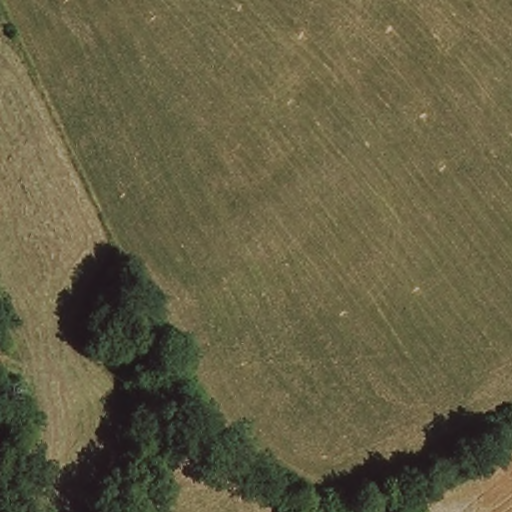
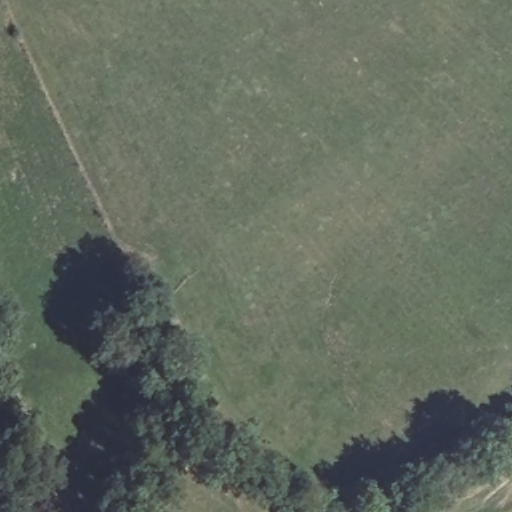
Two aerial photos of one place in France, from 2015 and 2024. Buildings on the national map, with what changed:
[]

